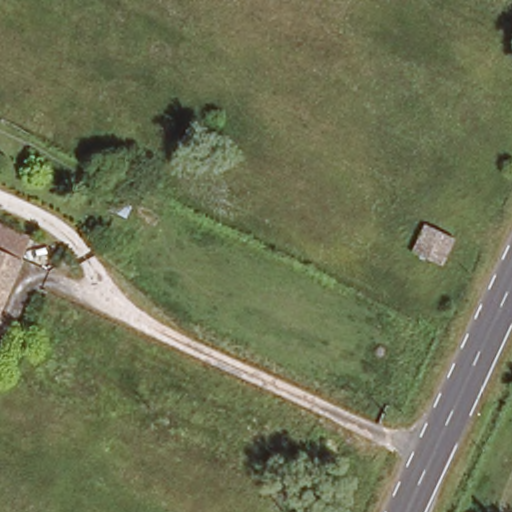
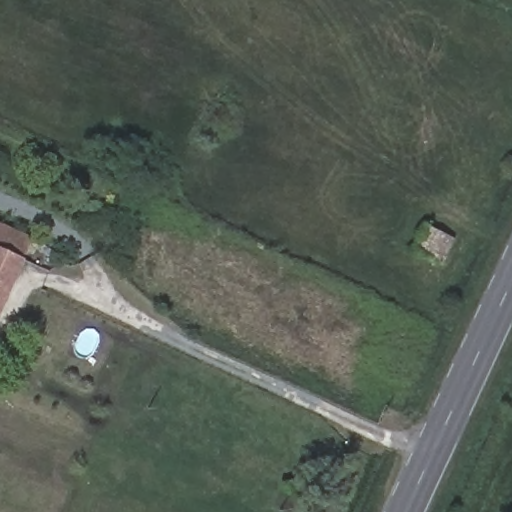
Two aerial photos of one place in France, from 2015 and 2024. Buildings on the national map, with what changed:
unchanged [(442,267),(415,255),(428,227),(456,240),(442,267)]
unchanged [(0,231),(35,248),(27,263),(0,250),(0,231)]
unchanged [(0,250),(27,263),(0,319),(0,250)]

